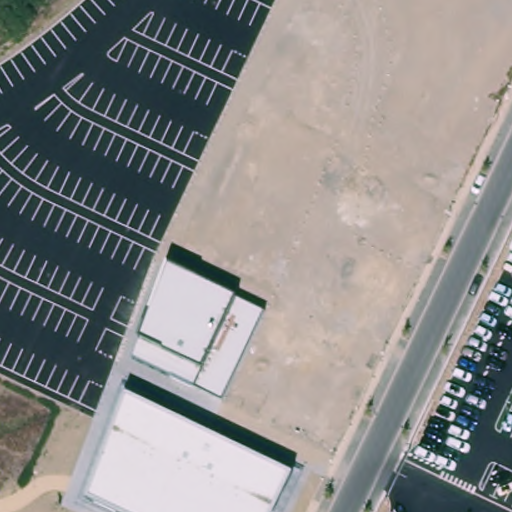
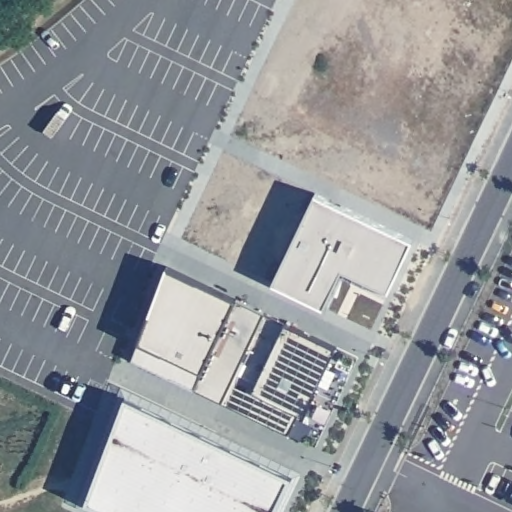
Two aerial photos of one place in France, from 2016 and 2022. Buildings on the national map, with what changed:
new [(315,194),(413,239),(389,290),(343,268),(324,306),(273,282),(315,194)]
unchanged [(134,359),(141,339),(166,269),(234,299),(263,316),(222,402),(134,359)]
new [(263,316),(335,346),(304,414),(296,410),(288,431),(222,402),(263,316)]
unchanged [(126,396),(293,477),(276,512),(109,512),(86,501),(126,396)]

